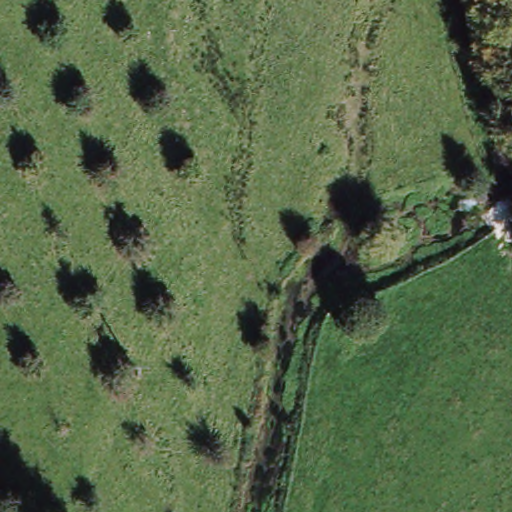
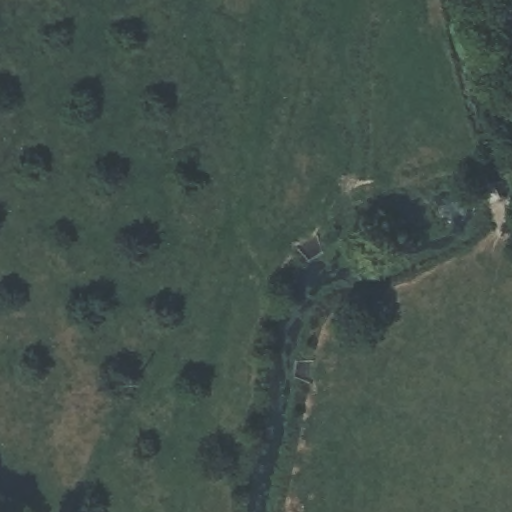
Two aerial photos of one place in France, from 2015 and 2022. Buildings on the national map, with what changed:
[]

